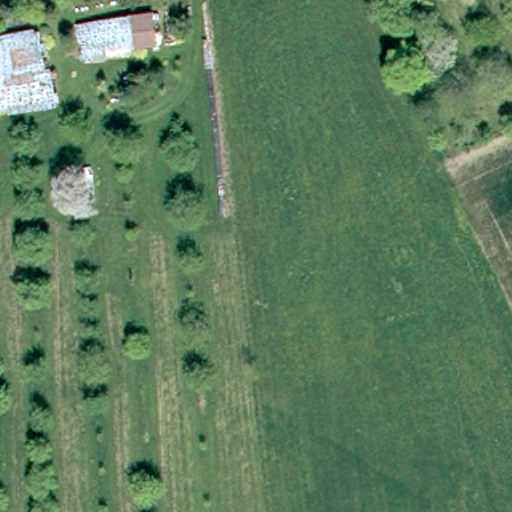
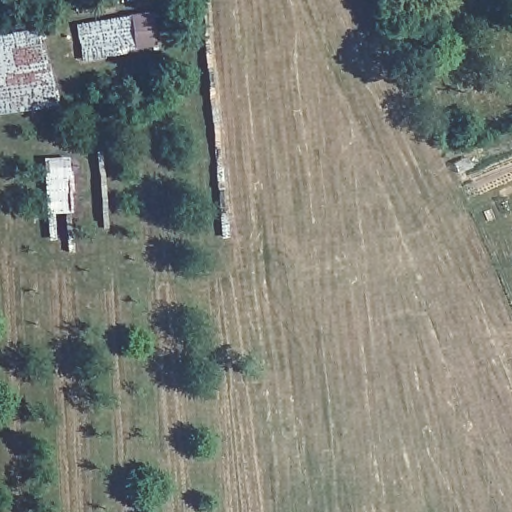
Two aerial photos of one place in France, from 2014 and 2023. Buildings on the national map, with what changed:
unchanged [(159,43),(86,51),(80,18),(153,7),(159,43)]
unchanged [(0,112),(0,36),(38,28),(45,71),(55,68),(63,105),(0,112)]

